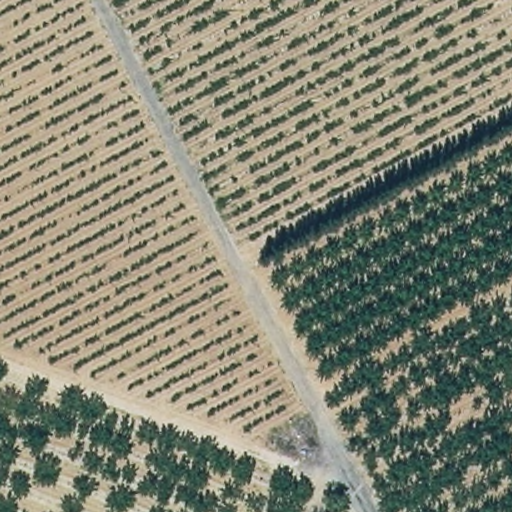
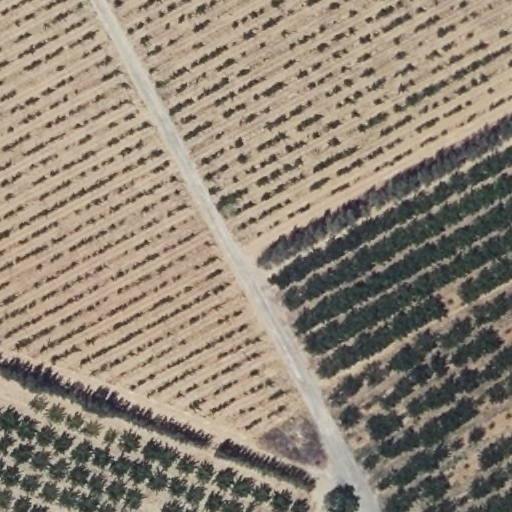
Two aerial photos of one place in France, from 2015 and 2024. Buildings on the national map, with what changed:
unchanged [(344,512),(324,512),(330,500),(348,504),(344,512)]

